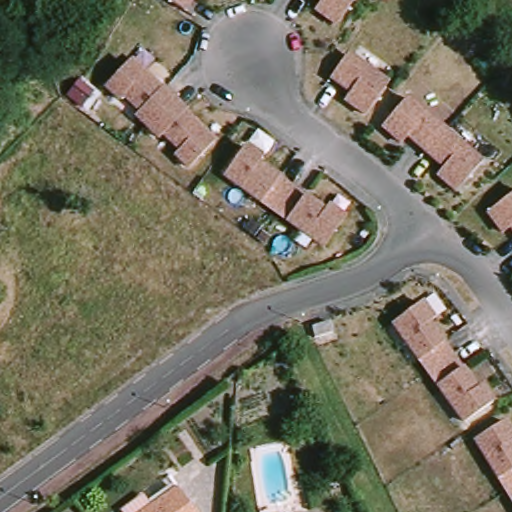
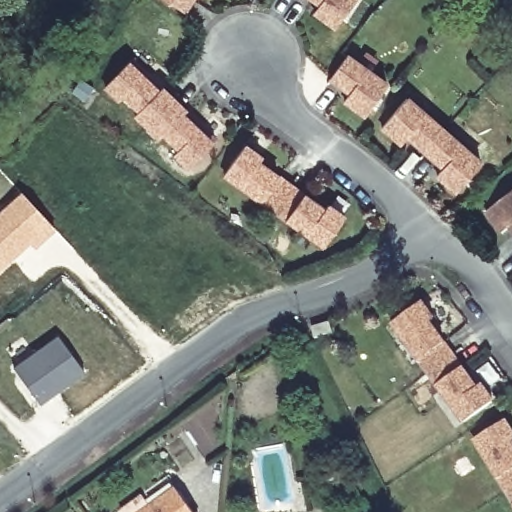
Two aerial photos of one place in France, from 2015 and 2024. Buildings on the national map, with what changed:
unchanged [(163,0),(193,0),(184,14),(163,0)]
unchanged [(315,15),(320,7),(311,0),(356,0),(335,29),(315,15)]
unchanged [(346,58),(387,87),(365,118),(344,103),(350,96),(330,81),(346,58)]
unchanged [(135,117),(139,112),(123,97),(119,102),(105,88),(131,61),(145,74),(142,77),(158,94),(161,90),(173,101),(147,129),(135,117)]
unchanged [(173,101),(185,113),(182,117),(198,132),(202,129),(215,142),(189,170),(175,156),(179,151),(163,136),(159,140),(147,129),(173,101)]
unchanged [(425,155),(407,139),(400,147),(381,130),(406,101),(443,134),(425,155)]
unchanged [(443,134),(480,166),(455,195),(436,177),(442,171),(425,155),(443,134)]
unchanged [(291,189),(273,213),(224,177),(244,148),(261,161),(255,169),(263,175),(266,171),(291,189)]
unchanged [(316,207),(313,211),(321,216),(327,207),(344,220),(323,249),(273,213),(291,189),(316,207)]
new [(56,230),(34,250),(29,245),(0,271),(0,208),(20,190),(56,230)]
unchanged [(509,231),(502,236),(486,216),(512,196),(512,234),(509,231)]
unchanged [(451,357),(427,375),(391,325),(420,305),(432,321),(424,327),(429,335),(433,332),(451,357)]
new [(57,340),(82,376),(36,406),(12,370),(57,340)]
unchanged [(469,383),(465,386),(471,393),(479,387),(491,405),(462,425),(427,375),(451,357),(469,383)]
unchanged [(505,494),(473,442),(503,423),(512,437),(512,443),(505,447),(510,455),(512,454),(512,490),(505,494)]
unchanged [(505,494),(512,490),(512,505),(505,494)]
unchanged [(143,497),(151,509),(177,491),(192,512),(122,512),(143,497)]

